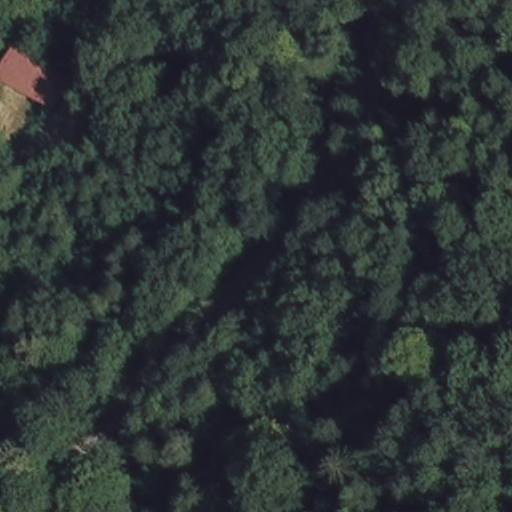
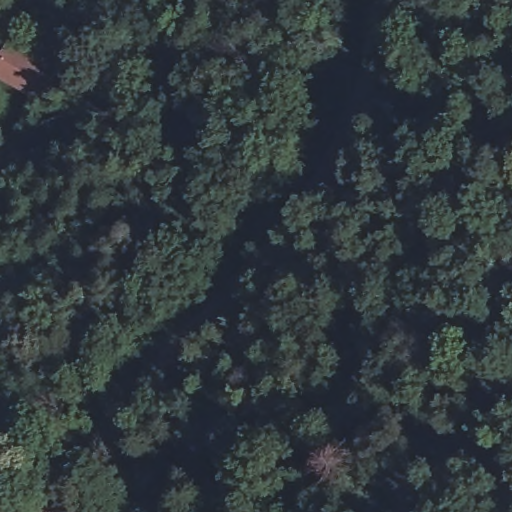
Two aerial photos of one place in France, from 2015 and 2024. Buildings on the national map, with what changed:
unchanged [(62,80),(50,104),(0,78),(0,68),(10,51),(62,80)]

